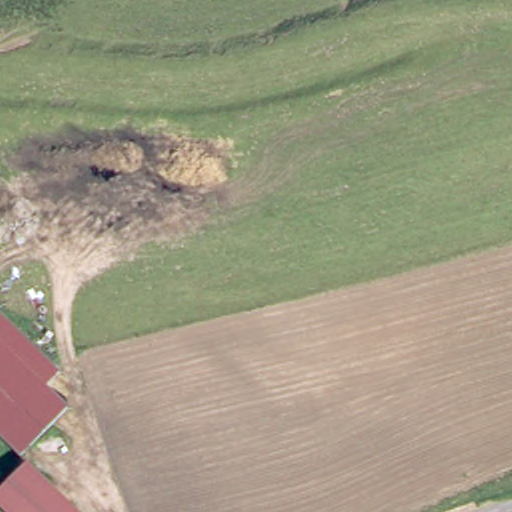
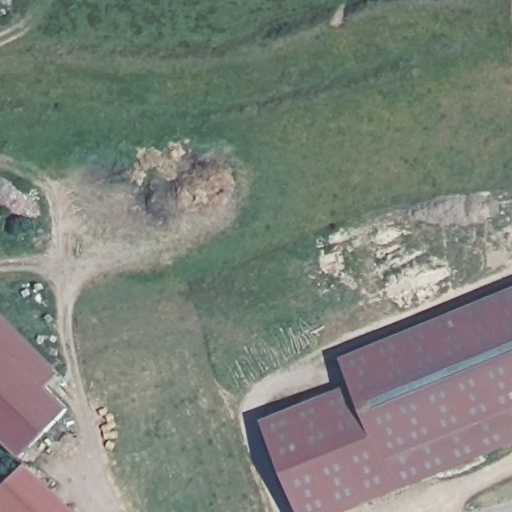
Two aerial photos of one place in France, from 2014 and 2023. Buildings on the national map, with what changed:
new [(333,372),(512,297),(512,446),(354,512),(286,512),(252,434),(342,395),(333,372)]
unchanged [(0,311),(60,373),(49,386),(67,408),(20,455),(0,435),(0,311)]
unchanged [(3,512),(0,509),(0,494),(28,464),(77,512),(3,512)]

